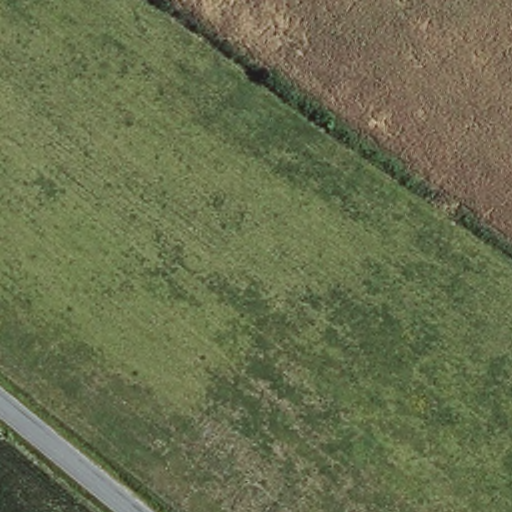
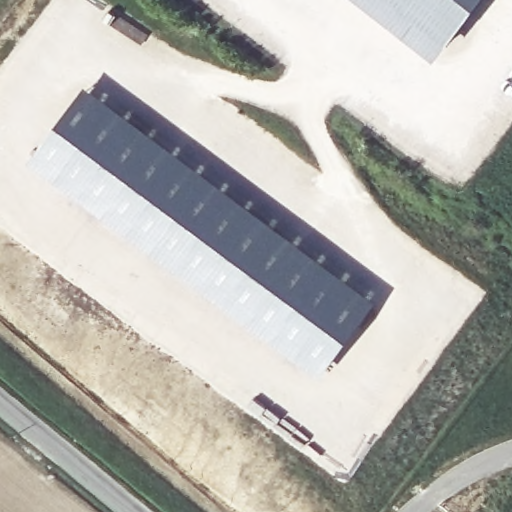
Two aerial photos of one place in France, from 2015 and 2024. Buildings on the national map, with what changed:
new [(376,0),(451,0),(423,36),(376,0)]
new [(87,88),(373,306),(323,376),(32,162),(87,88)]

